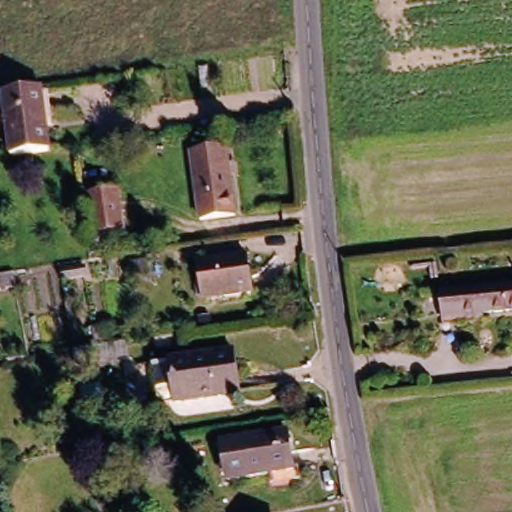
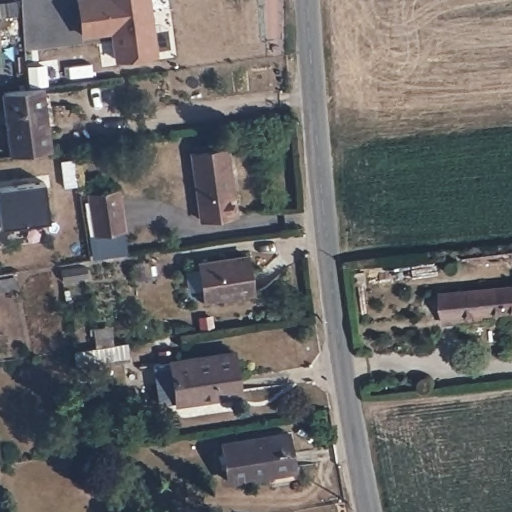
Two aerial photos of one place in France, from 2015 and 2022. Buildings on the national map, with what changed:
new [(158,55),(114,59),(112,33),(80,37),(77,0),(151,0),(158,55)]
new [(0,49),(0,41),(1,49),(0,49)]
unchanged [(43,86),(50,153),(10,158),(3,91),(43,86)]
unchanged [(230,134),(237,184),(240,201),(205,206),(203,189),(196,139),(230,134)]
new [(49,220),(1,227),(0,220),(0,188),(42,182),(49,220)]
unchanged [(90,193),(119,188),(125,228),(96,232),(90,193)]
unchanged [(249,255),(254,294),(204,298),(198,261),(249,255)]
unchanged [(446,325),(445,314),(444,290),(512,283),(512,307),(484,310),(485,321),(446,325)]
unchanged [(167,363),(231,350),(239,394),(173,406),(167,363)]
unchanged [(290,429),(295,461),(232,472),(225,440),(290,429)]

